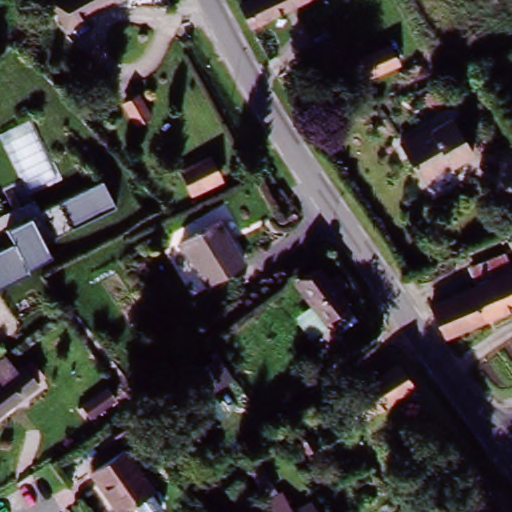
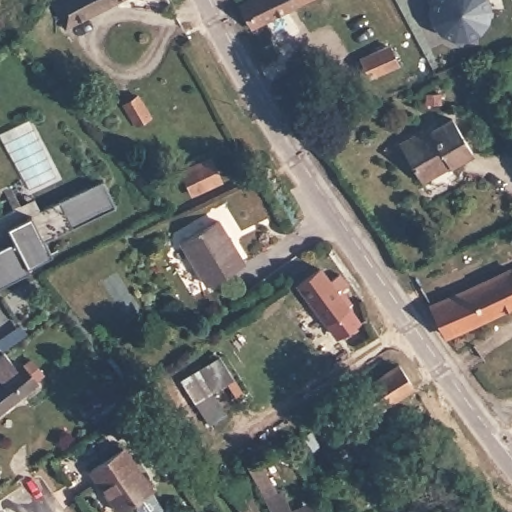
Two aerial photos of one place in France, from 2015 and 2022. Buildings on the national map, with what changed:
unchanged [(61,0),(126,0),(70,30),(56,2),(61,0)]
unchanged [(259,27),(246,3),(253,0),(311,0),(259,27)]
new [(493,11),(491,24),(479,34),(469,39),(455,38),(444,34),(439,31),(431,17),(429,5),(430,0),(490,0),(493,11)]
unchanged [(371,75),(362,57),(383,47),(393,65),(371,75)]
unchanged [(124,102),(137,95),(148,114),(135,121),(124,102)]
unchanged [(431,133),(454,119),(475,155),(453,169),(450,165),(426,179),(404,144),(428,129),(431,133)]
unchanged [(182,176),(210,161),(221,180),(192,196),(182,176)]
unchanged [(41,241),(50,257),(29,268),(33,274),(0,291),(0,249),(13,242),(0,219),(38,200),(41,210),(103,181),(114,206),(41,241)]
unchanged [(206,285),(181,244),(216,221),(243,262),(206,285)]
unchanged [(476,286),(467,267),(500,251),(509,271),(512,270),(512,304),(455,332),(442,339),(425,312),(438,304),(476,286)]
unchanged [(339,275),(346,284),(334,292),(345,308),(324,323),(298,286),(319,271),(328,283),(339,275)]
unchanged [(35,368),(43,376),(0,412),(0,380),(0,379),(0,355),(1,353),(16,367),(21,363),(31,371),(35,368)]
unchanged [(325,443),(313,423),(404,362),(417,383),(325,443)]
unchanged [(121,509),(93,469),(125,446),(153,485),(150,488),(163,505),(161,512),(144,512),(135,499),(121,509)]
unchanged [(266,471),(256,477),(248,463),(258,457),(266,471)]
unchanged [(274,512),(267,497),(281,489),(292,506),(303,501),(309,510),(317,506),(320,512),(274,512)]

